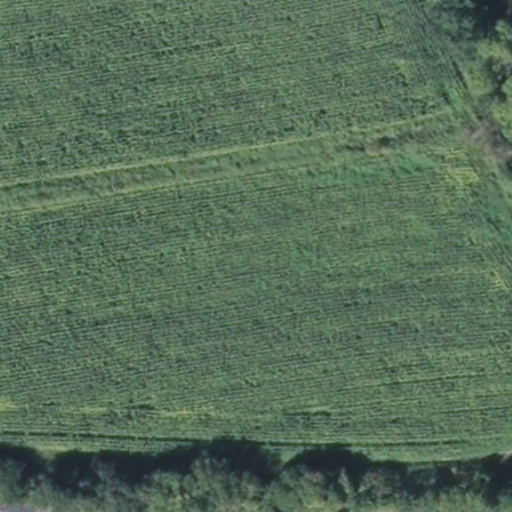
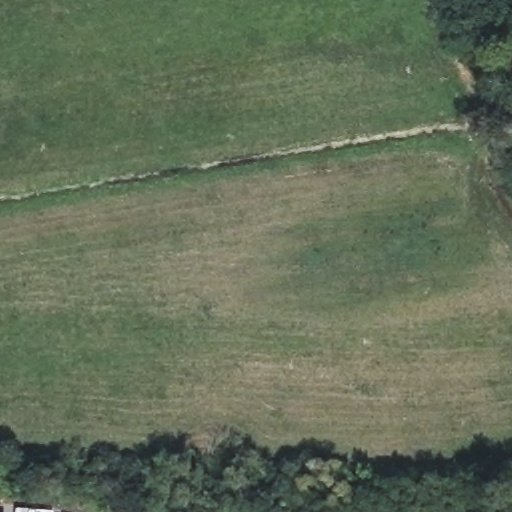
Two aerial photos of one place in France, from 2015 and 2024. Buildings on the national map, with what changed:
[]

